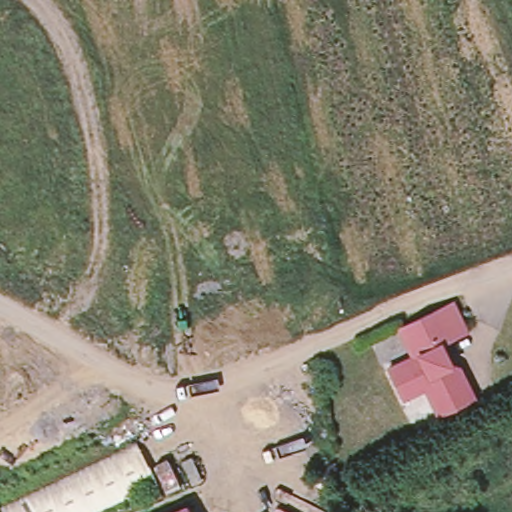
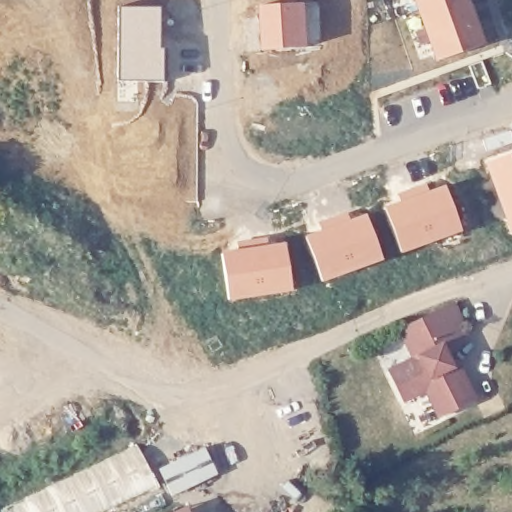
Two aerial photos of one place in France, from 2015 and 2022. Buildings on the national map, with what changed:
new [(437,59),(416,0),(469,0),(484,43),(437,59)]
new [(304,5),(306,46),(263,50),(261,6),(304,5)]
new [(161,6),(161,49),(164,50),(164,82),(118,81),(118,7),(161,6)]
new [(512,156),(512,230),(489,164),(512,156)]
new [(446,188),(462,231),(405,252),(389,209),(446,188)]
new [(366,217),(383,260),(325,281),(309,239),(366,217)]
new [(286,245),(293,291),(233,300),(226,255),(286,245)]
unchanged [(431,395),(424,383),(403,394),(393,375),(388,364),(412,353),(398,324),(452,298),(466,327),(441,339),(449,357),(460,364),(474,392),(439,409),(439,410),(431,395)]
unchanged [(141,450),(157,484),(93,512),(8,512),(141,450)]
unchanged [(183,497),(190,512),(152,512),(183,497)]

